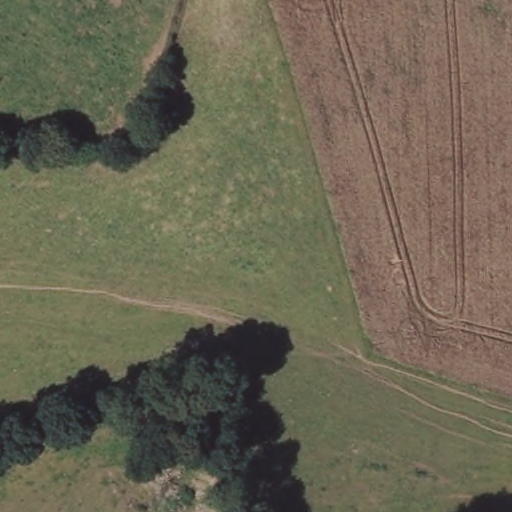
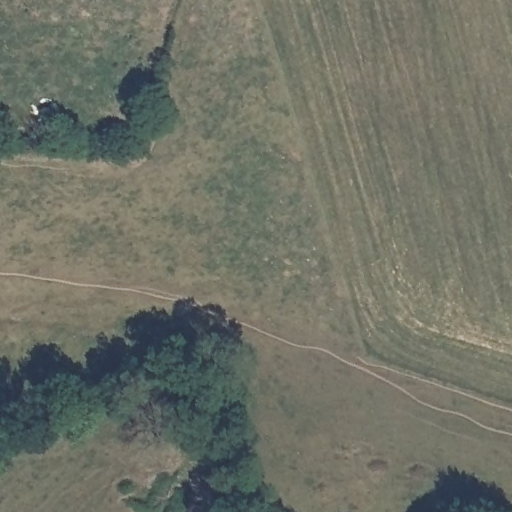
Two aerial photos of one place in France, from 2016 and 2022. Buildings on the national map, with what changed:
[]

